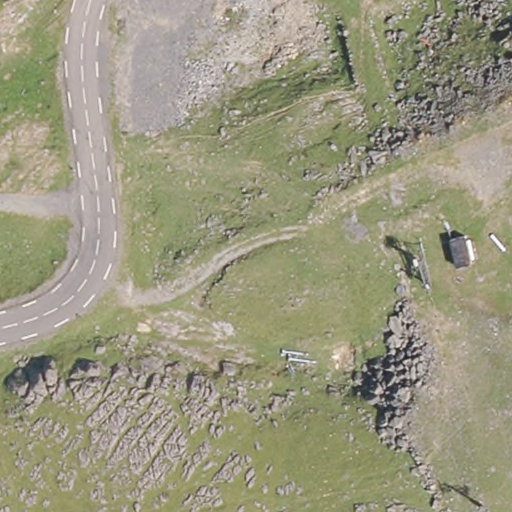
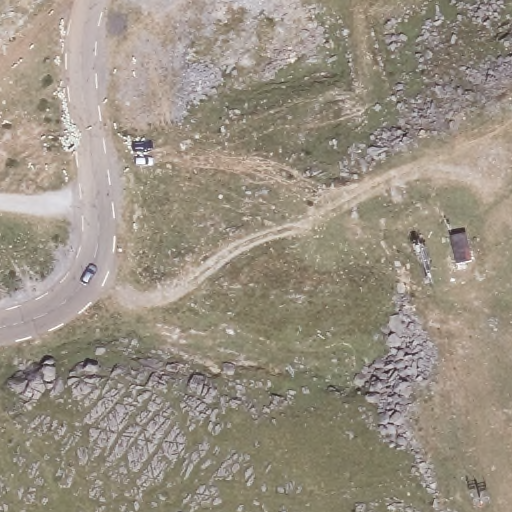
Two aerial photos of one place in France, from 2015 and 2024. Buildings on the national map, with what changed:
unchanged [(477,267),(455,270),(448,236),(469,236),(477,267)]

